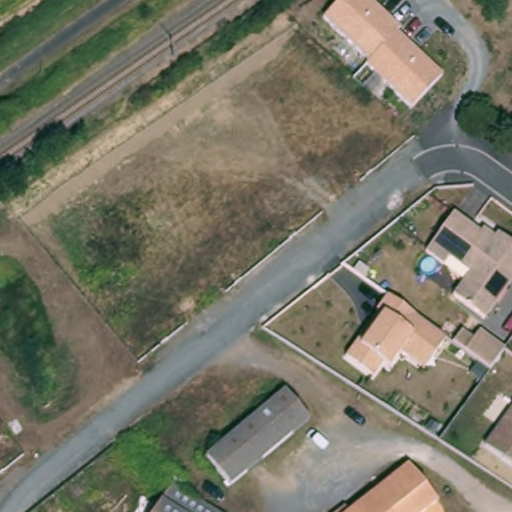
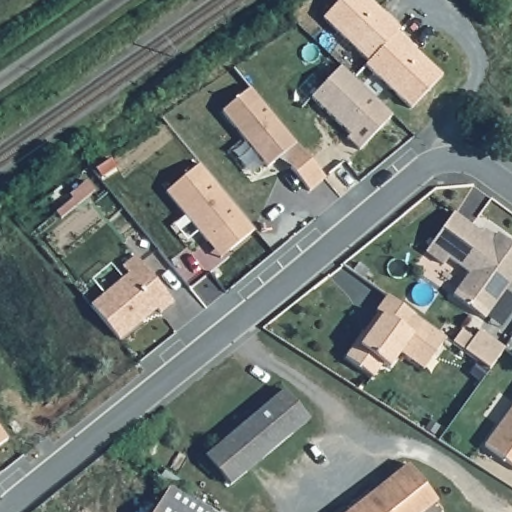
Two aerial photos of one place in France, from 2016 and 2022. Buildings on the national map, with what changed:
unchanged [(409,109),(322,18),(339,0),(363,0),(438,76),(409,109)]
new [(340,66),(391,115),(359,149),(347,139),(351,135),(311,97),(340,66)]
new [(249,87),(325,178),(309,191),(280,154),(267,167),(222,112),(249,87)]
new [(166,193),(198,165),(254,230),(221,257),(166,193)]
unchanged [(512,239),(512,299),(495,322),(462,300),(479,277),(458,263),(453,269),(434,257),(463,219),(490,239),(495,232),(506,241),(509,237),(512,239)]
new [(91,305),(128,274),(120,267),(135,255),(173,302),(161,312),(157,308),(118,339),(91,305)]
unchanged [(443,339),(420,369),(398,352),(387,367),(370,376),(344,359),(384,296),(443,339)]
unchanged [(316,423),(235,486),(211,456),(293,392),(316,423)]
unchanged [(485,449),(512,410),(512,468),(485,449)]
new [(0,444),(0,429),(7,439),(0,444)]
unchanged [(442,500),(427,512),(358,512),(418,467),(442,500)]
unchanged [(173,486),(217,512),(158,512),(173,486)]

